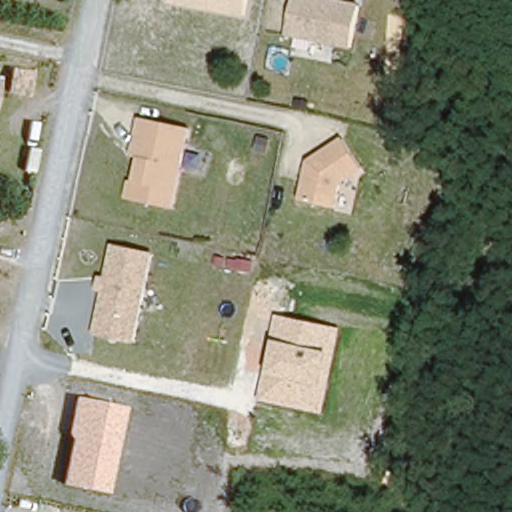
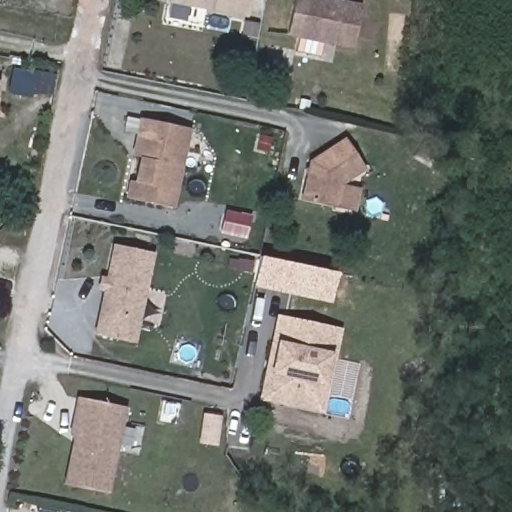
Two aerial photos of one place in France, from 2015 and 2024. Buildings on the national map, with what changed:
unchanged [(167,3),(168,0),(248,0),(245,16),(167,3)]
unchanged [(340,0),(362,5),(351,50),(290,36),(297,0),(340,0)]
unchanged [(130,181),(134,181),(139,158),(132,156),(140,119),(192,130),(175,210),(127,199),(130,181)]
unchanged [(308,161),(345,138),(365,170),(346,186),(341,210),(301,201),(308,161)]
unchanged [(153,253),(136,344),(94,337),(103,294),(96,293),(100,277),(106,277),(112,244),(153,253)]
new [(336,273),(329,304),(254,289),(260,257),(336,273)]
unchanged [(322,414),(256,400),(275,315),(340,328),(322,414)]
unchanged [(107,494),(61,485),(70,441),(65,435),(75,397),(125,408),(107,494)]

